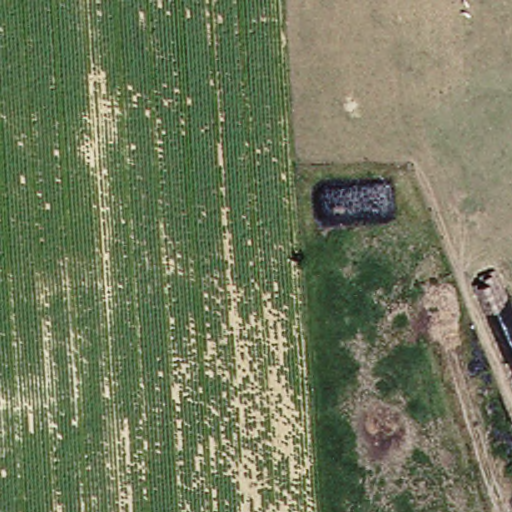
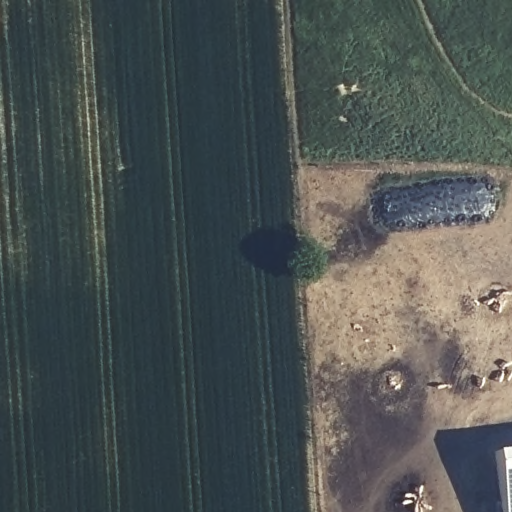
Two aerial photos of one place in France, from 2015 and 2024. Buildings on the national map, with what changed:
new [(512,512),(502,512),(494,454),(512,452),(512,512)]

